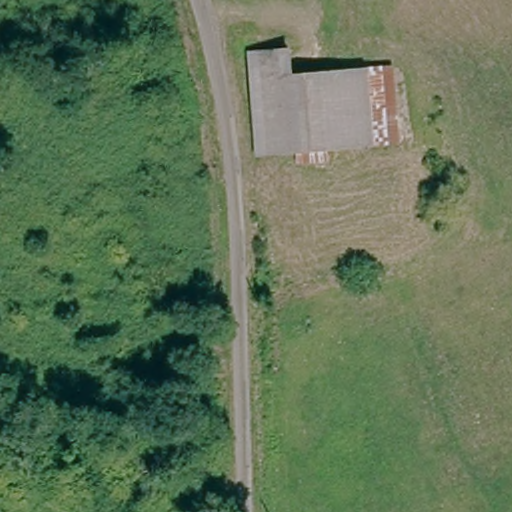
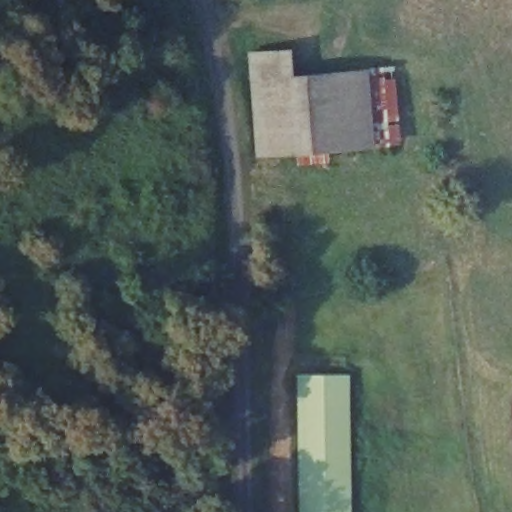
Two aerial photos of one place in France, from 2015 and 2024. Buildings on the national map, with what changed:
unchanged [(251,46),(295,47),(295,72),(390,71),(391,145),(250,144),(251,46)]
new [(351,512),(297,512),(297,375),(349,375),(351,512)]

